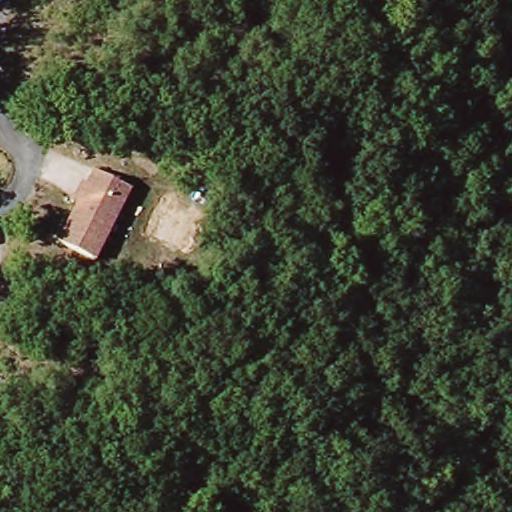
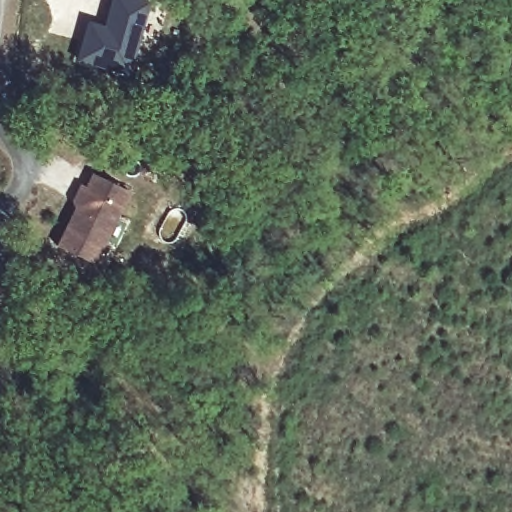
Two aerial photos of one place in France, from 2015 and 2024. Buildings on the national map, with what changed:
new [(85,23),(102,27),(108,0),(140,0),(144,1),(125,72),(76,59),(85,23)]
unchanged [(72,203),(78,201),(91,175),(128,193),(93,264),(57,247),(75,210),(72,203)]

